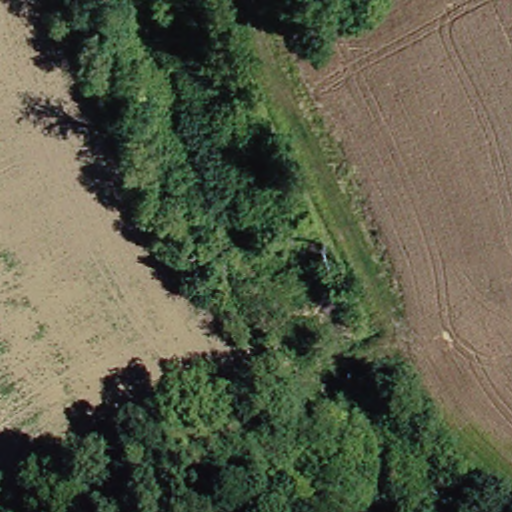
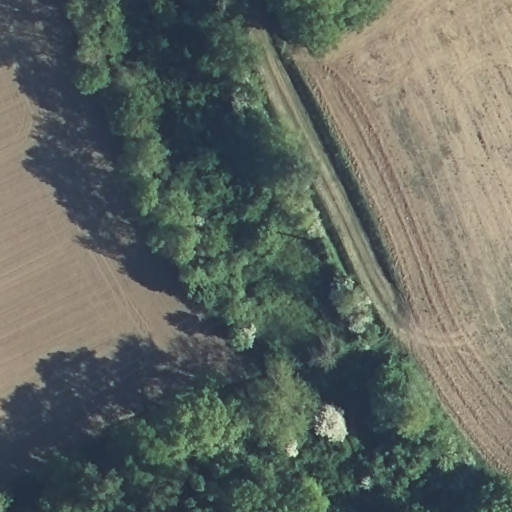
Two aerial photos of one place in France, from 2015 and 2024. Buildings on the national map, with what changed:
[]

